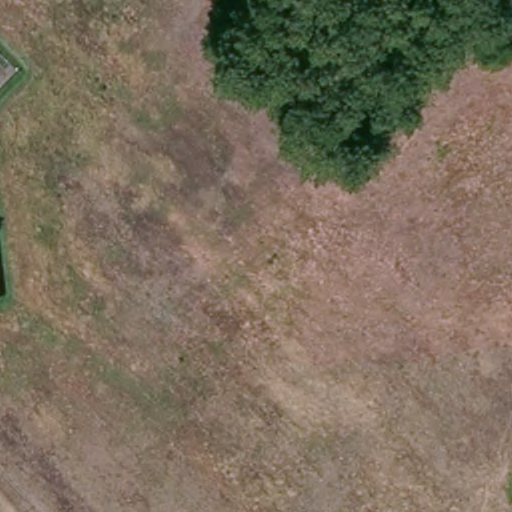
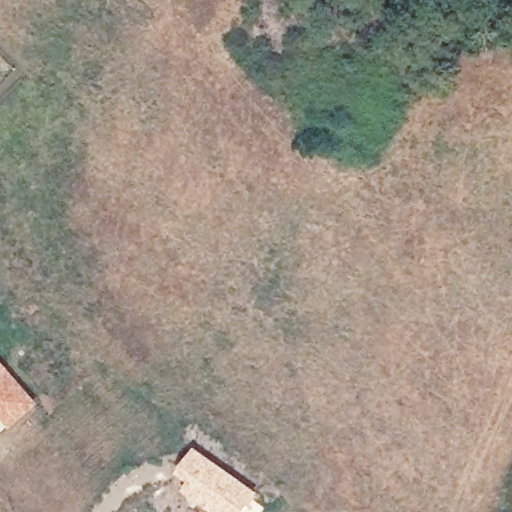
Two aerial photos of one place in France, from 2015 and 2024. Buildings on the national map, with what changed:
new [(39,405),(9,431),(4,425),(2,427),(0,425),(0,360),(39,405)]
new [(260,494),(255,501),(265,508),(261,512),(206,512),(181,496),(188,485),(176,476),(195,450),(260,494)]

